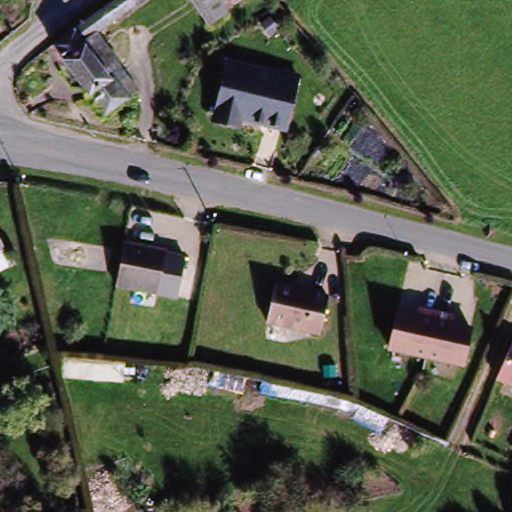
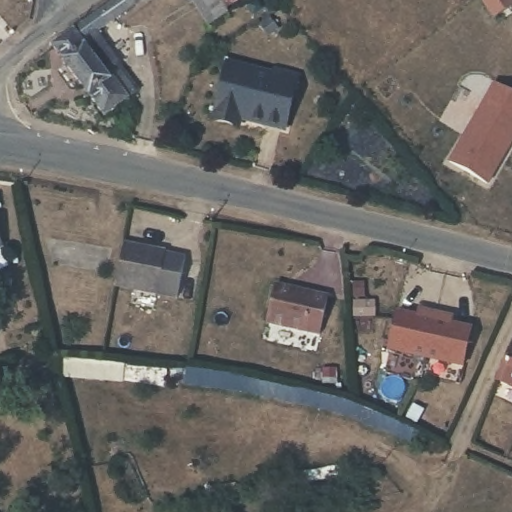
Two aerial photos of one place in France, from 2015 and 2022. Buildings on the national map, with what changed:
unchanged [(82,36),(136,0),(158,0),(160,3),(92,53),(82,36)]
unchanged [(223,8),(217,0),(234,0),(223,8)]
unchanged [(92,53),(115,88),(125,82),(140,104),(104,127),(55,54),(82,36),(92,53)]
unchanged [(295,83),(284,133),(241,125),(239,130),(215,126),(227,73),(272,82),(274,78),(295,83)]
new [(512,123),(512,142),(487,186),(449,164),(482,105),(512,123)]
unchanged [(3,240),(0,242),(0,234),(3,240)]
unchanged [(154,252),(159,263),(152,297),(110,289),(119,245),(154,252)]
unchanged [(277,289),(330,303),(320,340),(267,326),(277,289)]
unchanged [(400,315),(420,320),(422,312),(454,322),(451,328),(471,334),(460,371),(390,351),(400,315)]
unchanged [(512,358),(512,386),(502,382),(512,358)]

